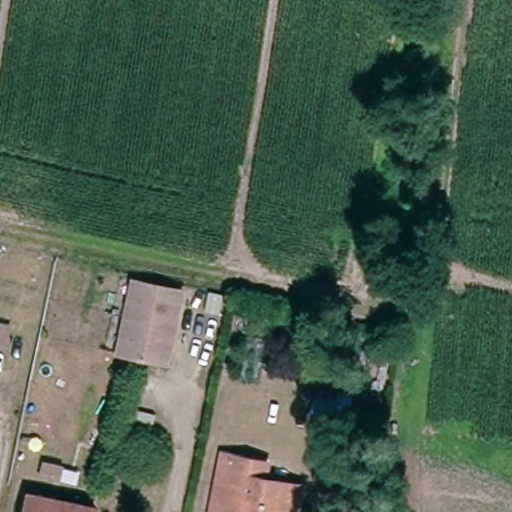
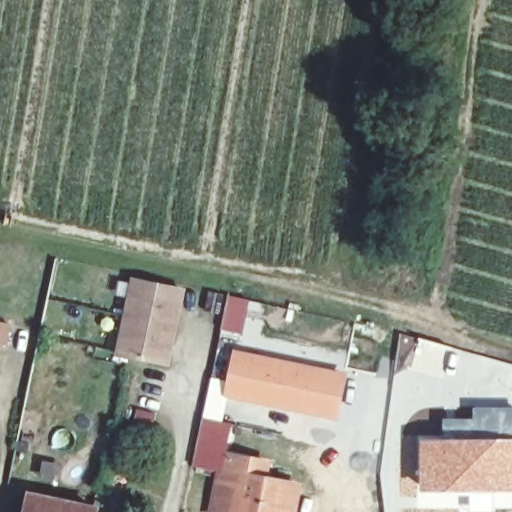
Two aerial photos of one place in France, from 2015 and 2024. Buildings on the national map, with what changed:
unchanged [(179,295),(163,367),(114,357),(130,285),(179,295)]
new [(206,290),(250,300),(242,334),(220,330),(223,313),(202,308),(206,290)]
unchanged [(2,347),(0,347),(0,330),(5,331),(2,347)]
new [(225,397),(235,350),(349,373),(340,420),(225,397)]
new [(442,416),(472,416),(471,405),(512,405),(512,437),(441,437),(442,416)]
new [(413,500),(415,491),(418,437),(441,437),(512,437),(512,508),(493,508),(492,512),(465,512),(468,496),(463,495),(461,506),(460,512),(408,512),(407,500),(413,500)]
unchanged [(248,465),(263,468),(265,467),(262,478),(261,484),(295,491),(290,512),(209,512),(220,458),(248,465)]
unchanged [(26,495),(36,497),(92,508),(91,512),(22,512),(22,511),(26,495)]

